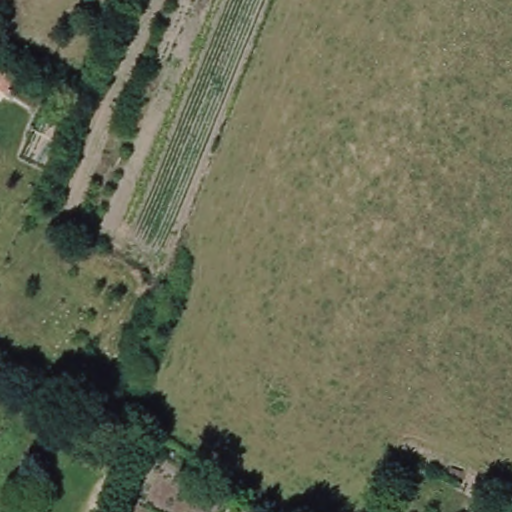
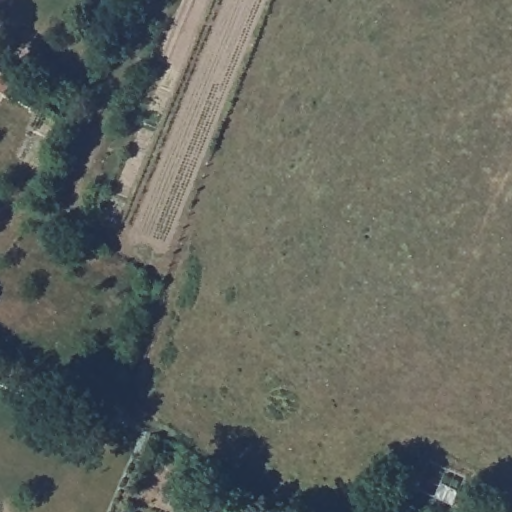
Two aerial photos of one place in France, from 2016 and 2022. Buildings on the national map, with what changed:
unchanged [(105,434),(92,457),(34,425),(47,402),(105,434)]

